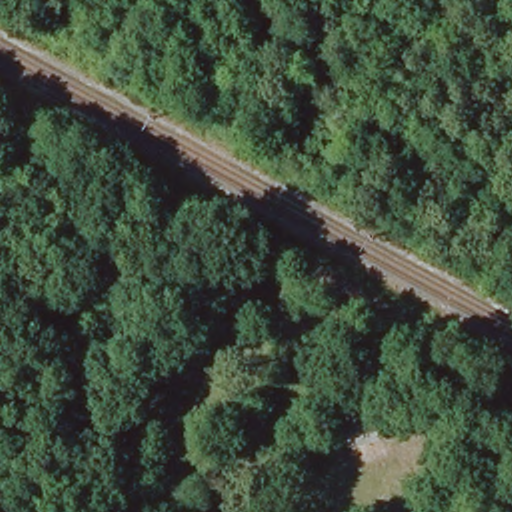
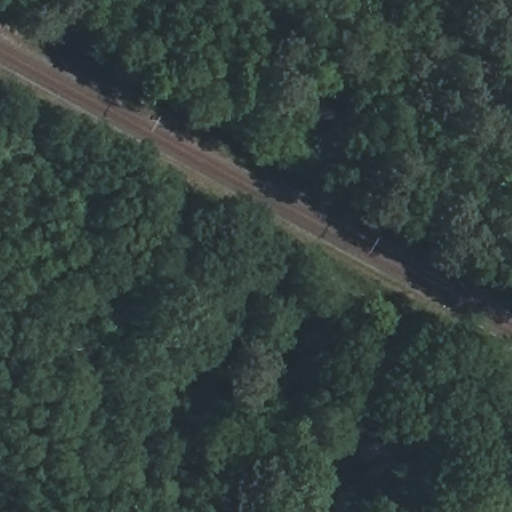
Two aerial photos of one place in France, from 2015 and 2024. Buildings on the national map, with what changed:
unchanged [(357,450),(352,430),(378,421),(383,442),(357,450)]

